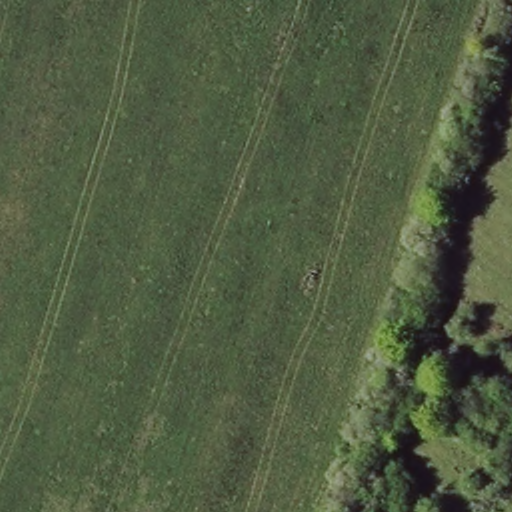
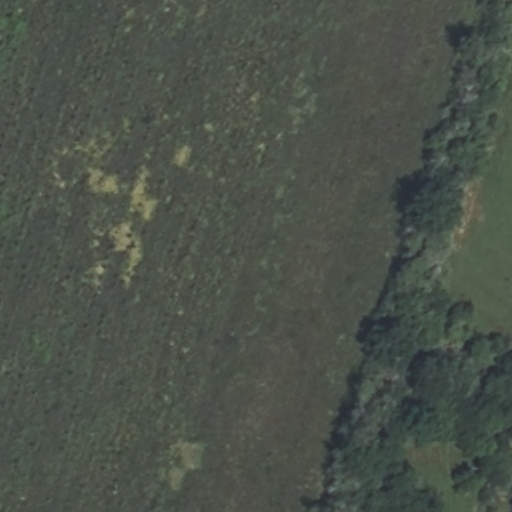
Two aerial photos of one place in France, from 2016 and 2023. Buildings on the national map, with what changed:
[]

